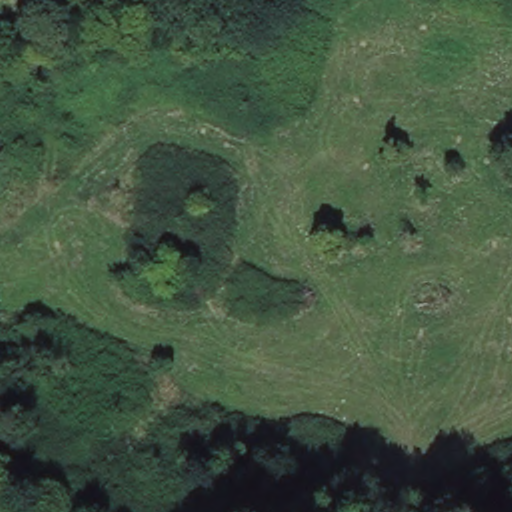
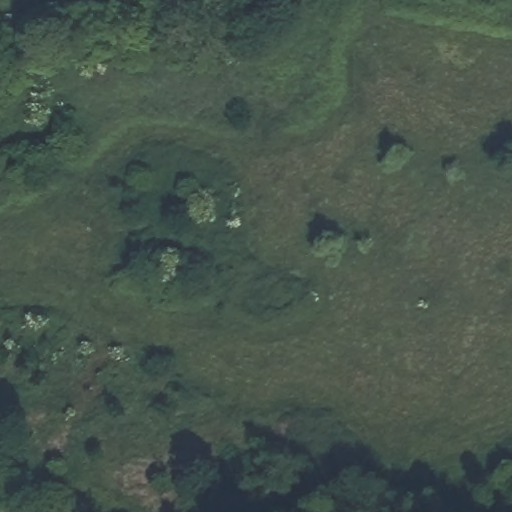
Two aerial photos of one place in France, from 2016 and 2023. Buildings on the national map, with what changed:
unchanged [(205,270),(200,291),(180,287),(187,266),(205,270)]

